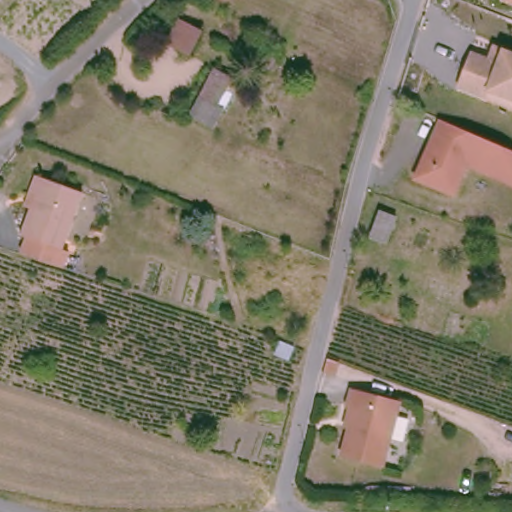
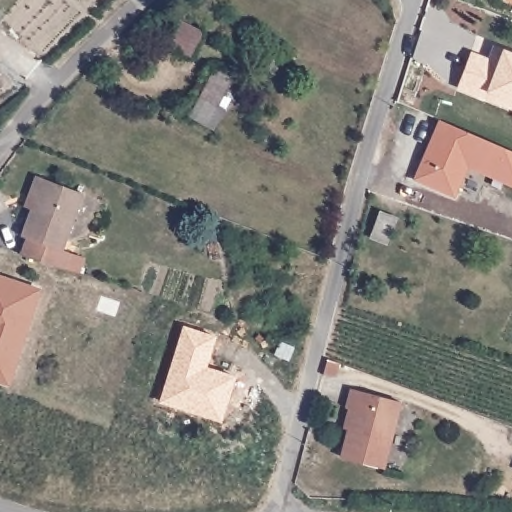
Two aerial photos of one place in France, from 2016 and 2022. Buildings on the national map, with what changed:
unchanged [(175,12),(195,24),(182,46),(162,35),(175,12)]
unchanged [(487,61),(492,47),(501,51),(512,55),(512,109),(455,87),(468,54),(487,61)]
unchanged [(195,111),(221,65),(239,75),(225,100),(229,102),(217,124),(195,111)]
unchanged [(437,120),(512,152),(512,186),(463,165),(450,195),(412,178),(437,120)]
unchanged [(27,239),(19,235),(42,177),(81,192),(59,250),(67,254),(62,267),(20,254),(27,239)]
unchanged [(395,214),(385,239),(372,234),(380,209),(395,214)]
new [(5,385),(0,383),(0,276),(38,290),(5,385)]
new [(191,413),(154,401),(179,327),(210,337),(200,367),(228,377),(218,407),(214,421),(191,413)]
unchanged [(355,406),(348,405),(353,385),(401,398),(383,464),(343,453),(355,406)]

